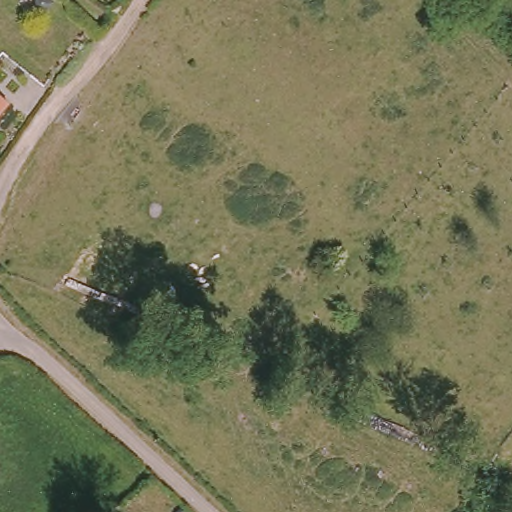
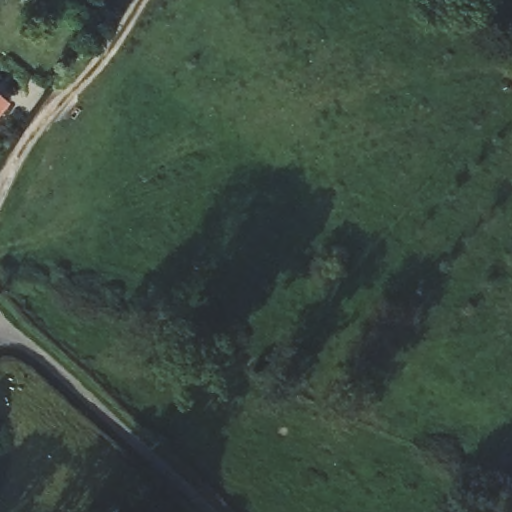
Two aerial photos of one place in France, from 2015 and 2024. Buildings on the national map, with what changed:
unchanged [(17,91),(0,115),(0,75),(19,89),(17,91)]

